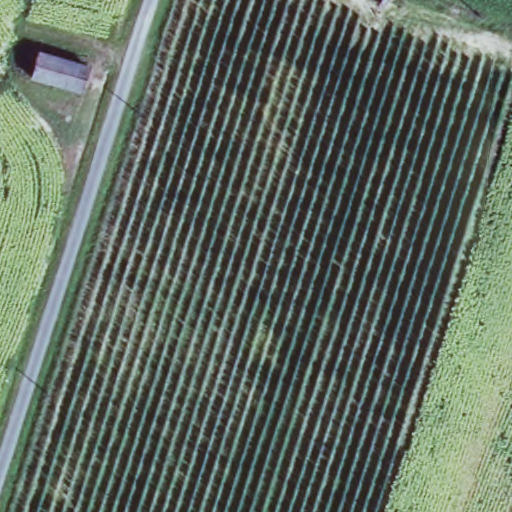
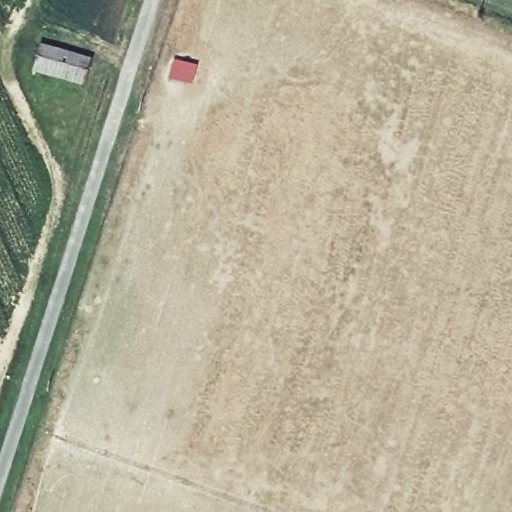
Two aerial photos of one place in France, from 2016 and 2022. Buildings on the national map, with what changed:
unchanged [(29,73),(38,45),(96,64),(86,92),(29,73)]

